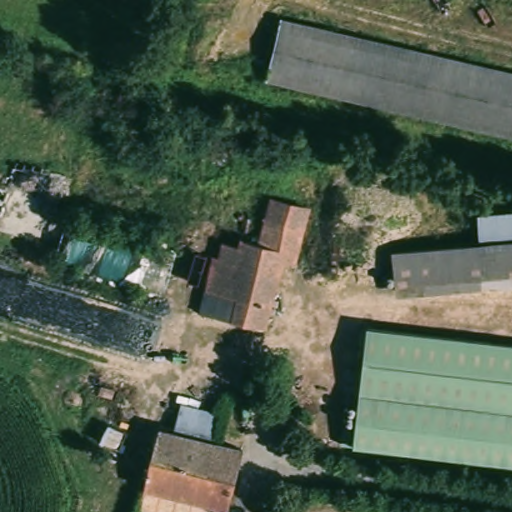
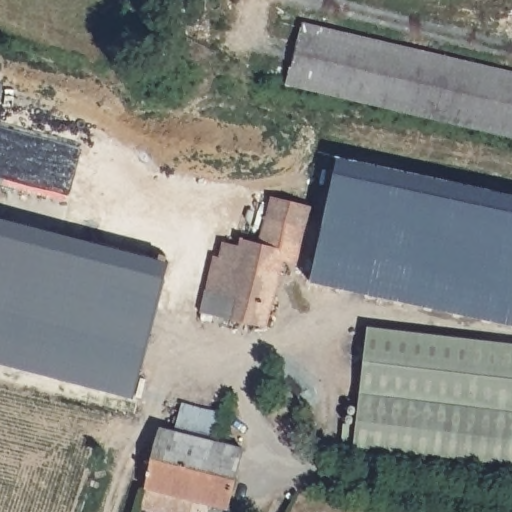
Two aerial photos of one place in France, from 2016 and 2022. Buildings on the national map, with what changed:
unchanged [(277,21),(512,72),(512,133),(265,80),(277,21)]
new [(310,283),(338,157),(512,194),(512,326),(310,283)]
unchanged [(290,252),(271,327),(199,305),(214,251),(217,252),(226,223),(242,227),(240,239),(252,242),(261,216),(267,198),(310,212),(308,216),(305,230),(298,255),(290,252)]
demolished [(65,211),(176,245),(161,292),(54,261),(65,211)]
new [(0,219),(168,263),(132,399),(0,364),(0,219)]
demolished [(400,286),(396,248),(512,238),(512,276),(400,286)]
unchanged [(512,343),(512,465),(342,443),(345,406),(358,406),(366,325),(512,343)]
unchanged [(160,406),(213,420),(207,442),(155,428),(160,406)]
unchanged [(244,452),(232,512),(230,512),(144,487),(155,428),(207,442),(244,452)]
new [(156,512),(139,507),(144,487),(193,501),(190,512),(156,512)]

